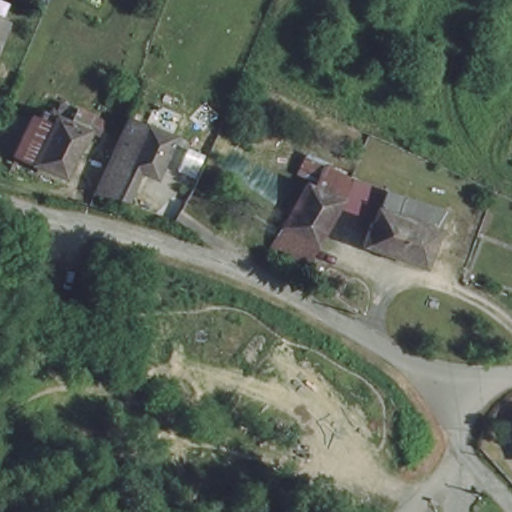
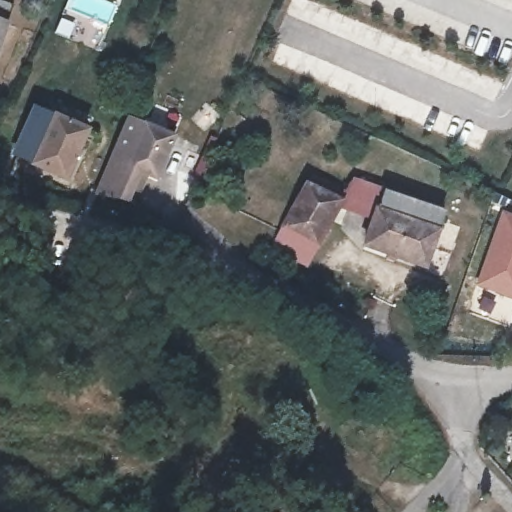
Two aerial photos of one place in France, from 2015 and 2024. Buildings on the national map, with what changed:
unchanged [(0,39),(0,8),(9,11),(0,39)]
unchanged [(30,126),(35,129),(40,121),(53,127),(60,114),(90,127),(63,186),(13,164),(30,126)]
unchanged [(130,121),(175,139),(158,183),(140,176),(128,206),(101,196),(130,121)]
unchanged [(275,241),(283,226),(309,181),(344,202),(318,246),(310,262),(275,241)]
unchanged [(374,220),(350,210),(360,183),(444,215),(425,268),(365,246),(374,220)]
new [(501,210),(512,214),(512,298),(475,285),(501,210)]

